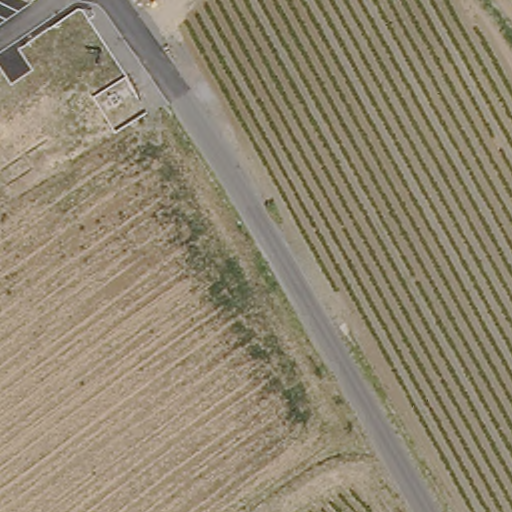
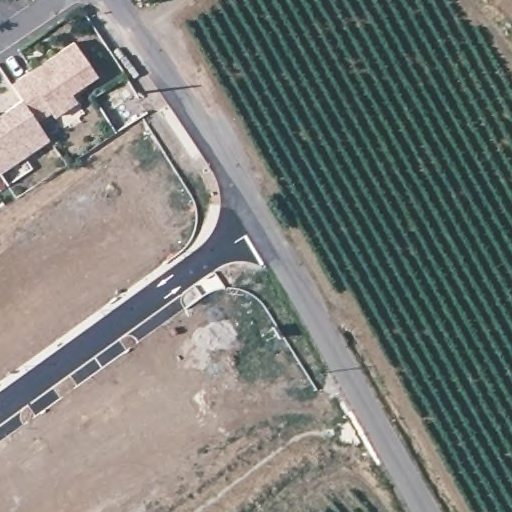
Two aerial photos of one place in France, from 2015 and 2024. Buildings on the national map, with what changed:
new [(10,84),(73,41),(96,76),(70,94),(76,101),(54,116),(50,110),(36,121),(48,138),(0,171),(0,113),(21,100),(10,84)]

